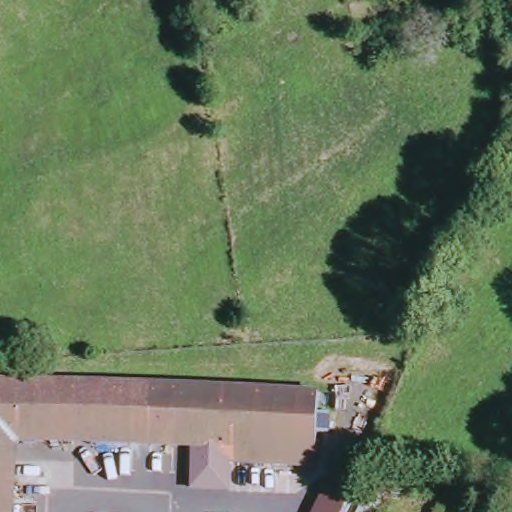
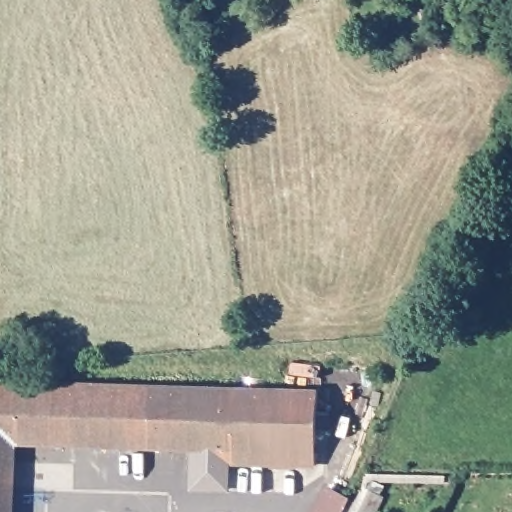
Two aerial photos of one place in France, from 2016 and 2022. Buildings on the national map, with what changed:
unchanged [(50,383),(313,391),(313,414),(326,414),(326,433),(312,433),(310,465),(225,463),(223,502),(186,502),(188,448),(11,442),(9,512),(0,512),(0,381),(50,383)]
unchanged [(345,512),(312,512),(325,488),(349,503),(345,512)]
unchanged [(369,512),(345,512),(349,503),(356,492),(374,502),(369,512)]

